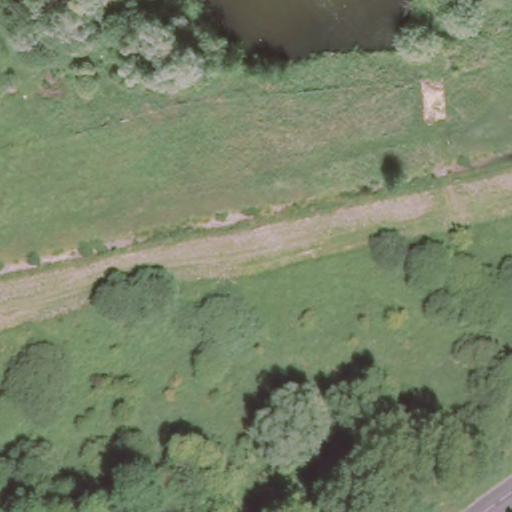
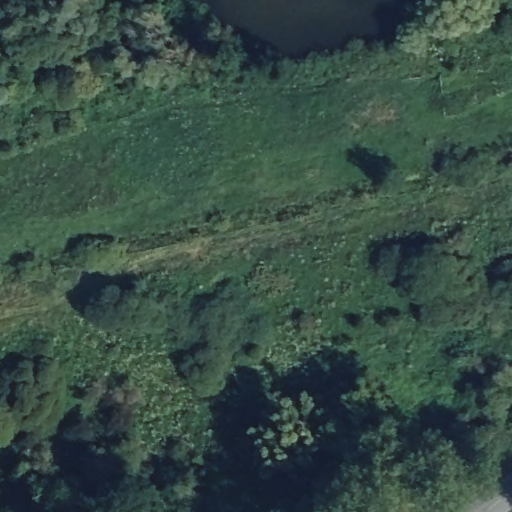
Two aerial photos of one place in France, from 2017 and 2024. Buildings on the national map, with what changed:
unchanged [(445,14),(425,14),(423,0),(443,0),(445,14)]

